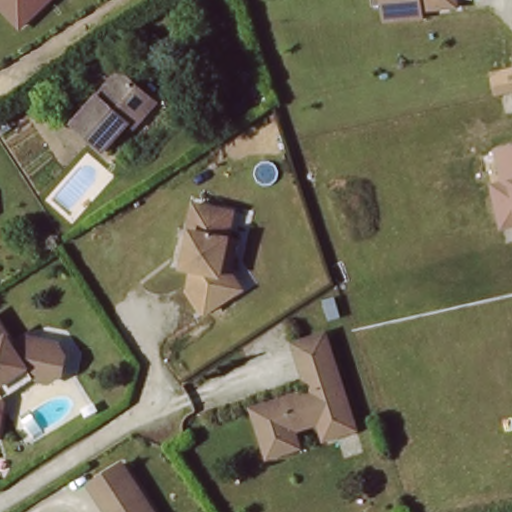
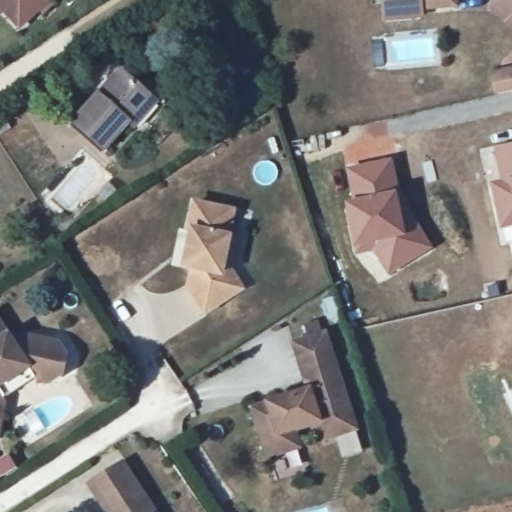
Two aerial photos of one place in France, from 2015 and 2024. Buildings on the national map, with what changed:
unchanged [(0,6),(0,0),(60,0),(26,33),(0,6)]
unchanged [(430,13),(432,21),(392,27),(388,0),(474,0),(475,7),(430,13)]
unchanged [(146,125),(138,117),(112,146),(79,117),(98,97),(128,65),(146,81),(160,94),(168,101),(146,125)]
unchanged [(512,147),(512,231),(502,234),(490,184),(500,181),(494,152),(512,147)]
new [(390,162),(397,197),(421,234),(408,242),(418,256),(397,270),(380,241),(358,246),(347,206),(358,204),(350,172),(390,162)]
unchanged [(229,207),(224,232),(225,233),(218,270),(230,288),(202,307),(186,281),(190,263),(187,263),(189,251),(185,243),(188,226),(185,226),(191,199),(229,207)]
unchanged [(0,408),(0,317),(17,342),(29,335),(61,342),(68,352),(65,368),(53,376),(36,372),(7,391),(4,409),(0,408)]
unchanged [(295,338),(326,329),(335,359),(312,366),(317,382),(310,385),(295,338)]
unchanged [(355,423),(335,429),(330,412),(292,423),(297,441),(267,450),(252,402),(310,385),(317,382),(312,366),(335,359),(355,423)]
unchanged [(0,432),(0,408),(4,409),(0,432)]
unchanged [(95,477),(122,459),(157,512),(118,512),(95,477)]

